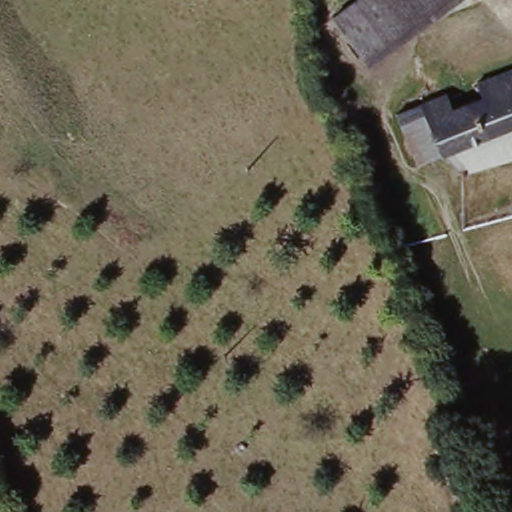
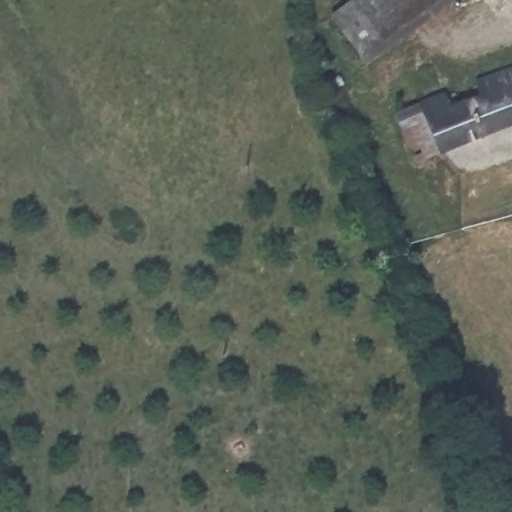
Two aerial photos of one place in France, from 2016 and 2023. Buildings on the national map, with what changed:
unchanged [(368,72),(330,21),(357,0),(464,0),(446,13),(368,72)]
unchanged [(416,168),(395,120),(450,97),(455,108),(467,104),(480,98),(477,88),(512,74),(512,129),(483,140),(416,168)]

